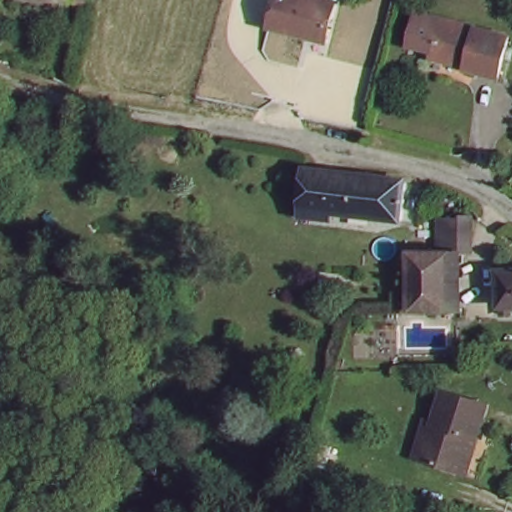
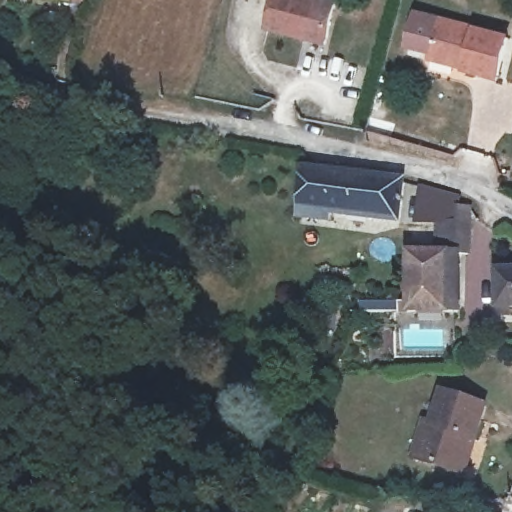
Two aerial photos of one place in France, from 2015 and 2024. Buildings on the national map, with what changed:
unchanged [(80,6),(39,0),(81,0),(80,6)]
unchanged [(336,9),(326,45),(273,34),(284,0),(305,0),(336,9)]
unchanged [(436,56),(411,52),(411,49),(416,18),(441,22),(509,34),(503,75),(474,70),(435,62),(436,56)]
unchanged [(396,178),(396,214),(297,213),(300,171),(378,173),(396,178)]
unchanged [(402,311),(402,292),(415,292),(415,246),(433,246),(436,236),(435,218),(463,217),(463,234),(466,308),(402,311)]
unchanged [(512,317),(499,317),(501,263),(512,263),(512,317)]
unchanged [(455,467),(413,455),(424,418),(431,419),(439,392),(481,403),(474,435),(466,469),(455,467)]

